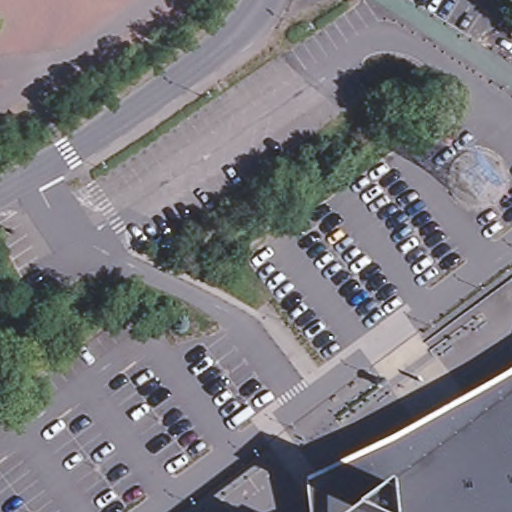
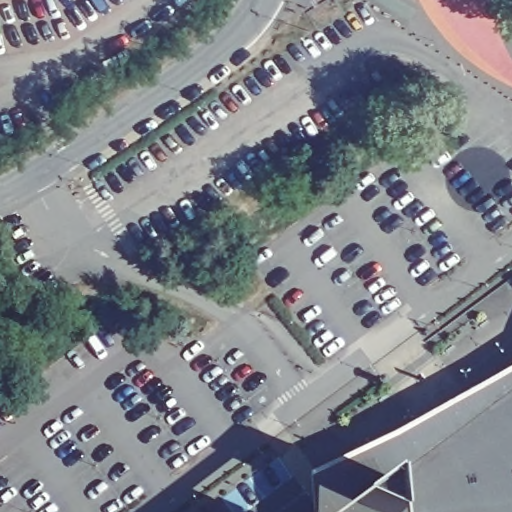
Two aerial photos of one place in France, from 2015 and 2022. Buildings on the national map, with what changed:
unchanged [(301,487),(404,436),(486,391),(512,374),(512,512),(304,512),(301,487)]

